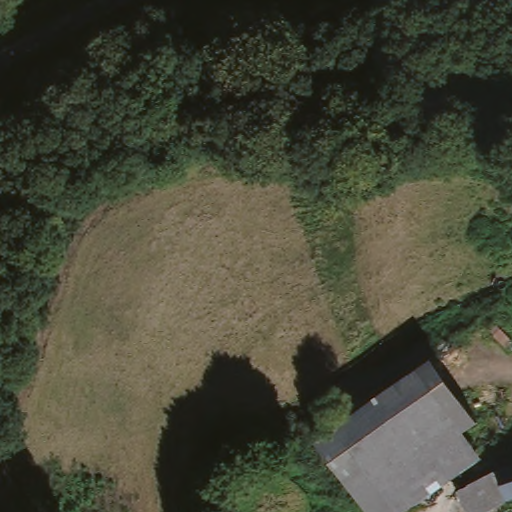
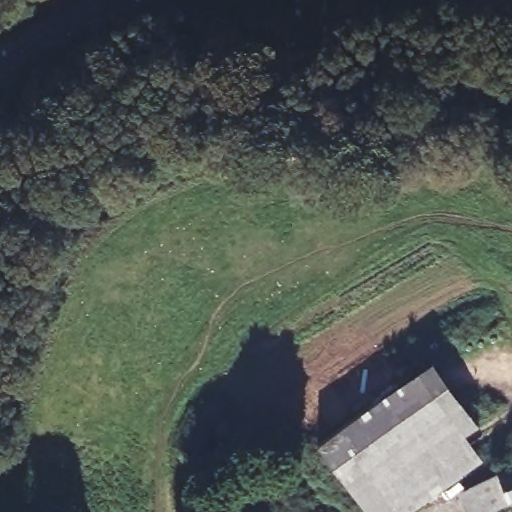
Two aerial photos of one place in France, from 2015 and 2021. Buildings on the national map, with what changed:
unchanged [(408,512),(372,512),(320,454),(416,371),(481,444),(408,512)]
unchanged [(512,471),(512,505),(498,512),(463,512),(456,499),(479,488),(503,475),(512,471)]

